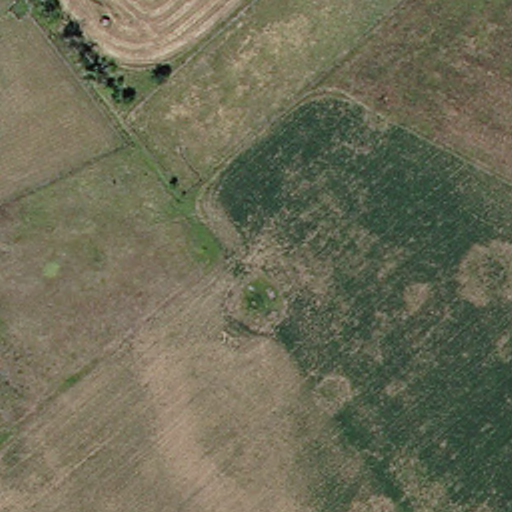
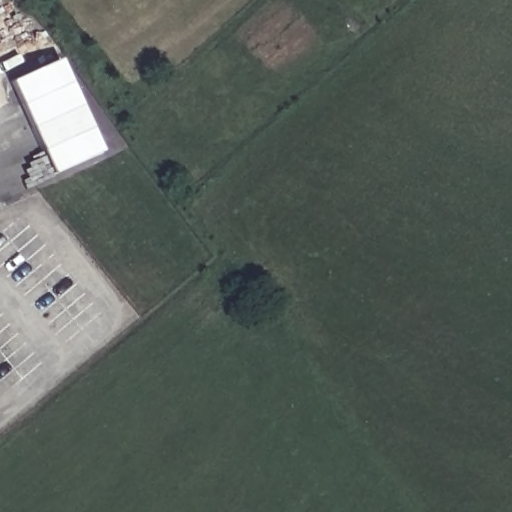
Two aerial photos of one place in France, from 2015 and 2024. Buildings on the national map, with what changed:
new [(54,61),(95,152),(47,175),(5,84),(54,61)]

